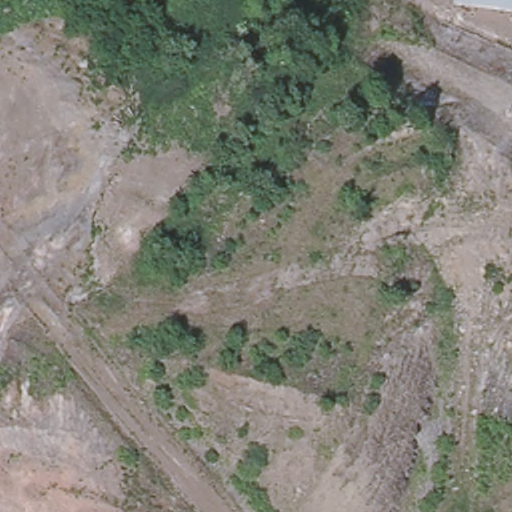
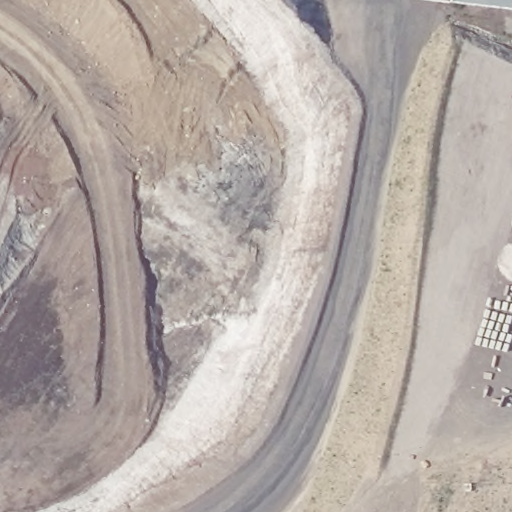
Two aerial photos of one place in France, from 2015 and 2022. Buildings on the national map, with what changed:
unchanged [(512,8),(452,1),(453,0),(512,0),(512,8)]

